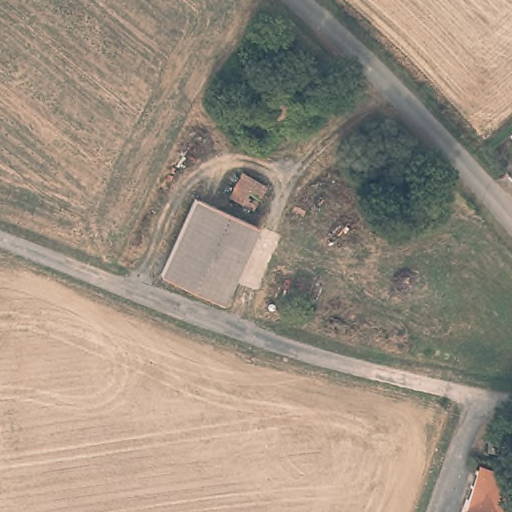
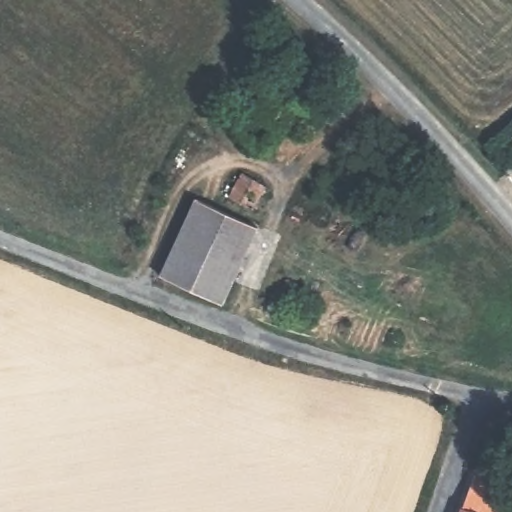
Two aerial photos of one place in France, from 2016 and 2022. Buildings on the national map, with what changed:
unchanged [(238,174),(265,186),(253,210),(227,198),(238,174)]
unchanged [(210,265),(199,290),(164,278),(195,202),(230,219),(210,265)]
unchanged [(230,219),(257,232),(236,278),(227,300),(199,290),(210,265),(230,219)]
unchanged [(509,475),(496,512),(478,512),(463,506),(479,464),(509,475)]
unchanged [(463,506),(478,512),(461,512),(463,506)]

